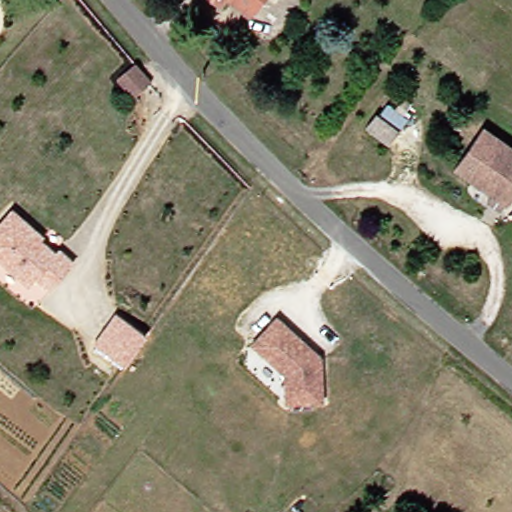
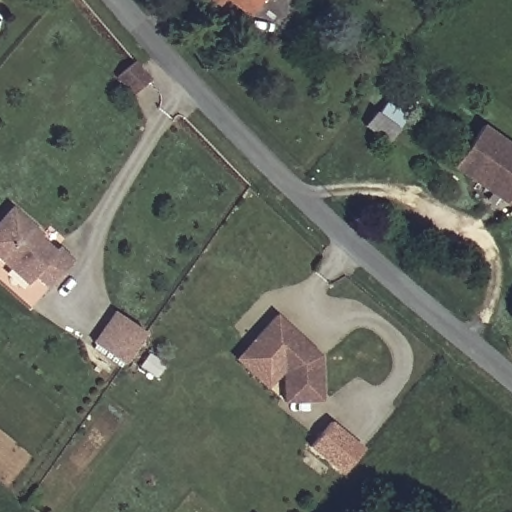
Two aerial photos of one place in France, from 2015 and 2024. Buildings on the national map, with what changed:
unchanged [(201,2),(203,0),(222,0),(213,11),(201,2)]
unchanged [(223,0),(257,0),(247,15),(223,0)]
unchanged [(234,60),(219,43),(230,31),(244,48),(234,60)]
unchanged [(136,98),(123,80),(140,64),(156,81),(136,98)]
unchanged [(407,113),(388,138),(367,121),(377,108),(380,109),(388,99),(407,113)]
unchanged [(506,210),(454,172),(486,129),(512,148),(512,204),(511,204),(506,210)]
unchanged [(32,230),(28,234),(43,250),(49,243),(68,258),(44,284),(28,272),(19,282),(0,267),(0,211),(4,207),(32,230)]
unchanged [(112,314),(142,337),(126,359),(120,367),(91,343),(97,335),(112,314)]
unchanged [(321,358),(324,403),(287,405),(286,375),(252,346),(275,319),(321,358)]
new [(312,447),(333,421),(366,448),(345,474),(312,447)]

